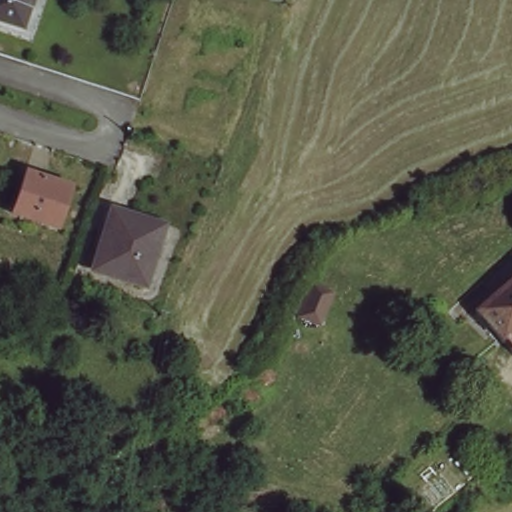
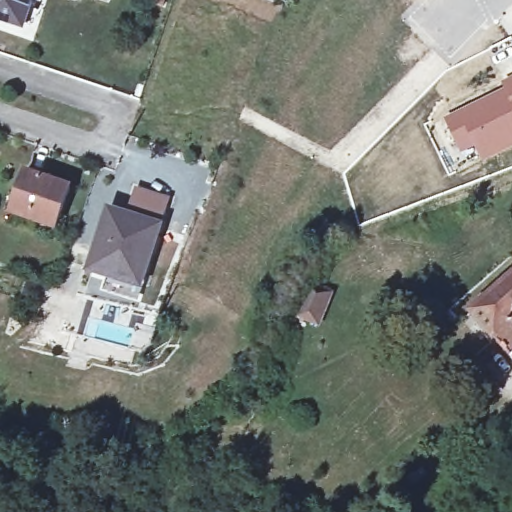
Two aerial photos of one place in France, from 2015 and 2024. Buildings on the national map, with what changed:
unchanged [(0,19),(0,0),(35,0),(25,27),(0,19)]
new [(512,80),(512,147),(482,162),(473,147),(460,153),(442,117),(495,90),(512,80)]
unchanged [(68,187),(52,233),(32,227),(35,217),(11,208),(23,171),(68,187)]
unchanged [(154,230),(135,286),(89,270),(109,213),(154,230)]
unchanged [(512,271),(512,365),(467,310),(512,271)]
unchanged [(328,296),(315,321),(296,312),(309,287),(328,296)]

